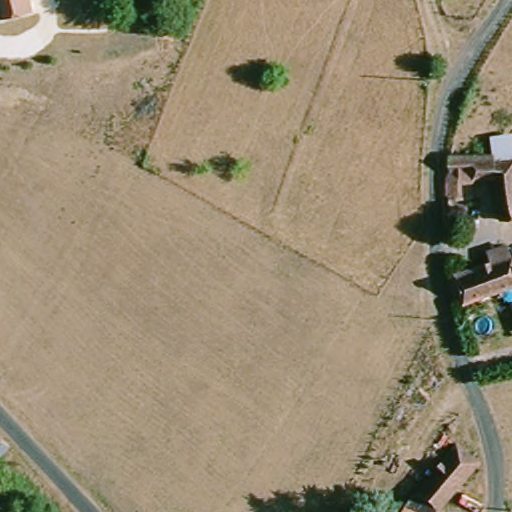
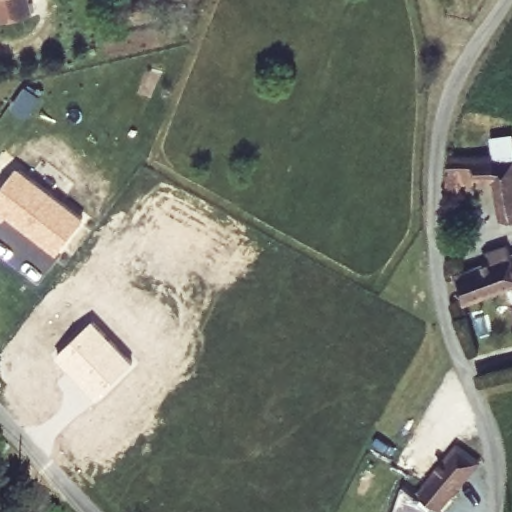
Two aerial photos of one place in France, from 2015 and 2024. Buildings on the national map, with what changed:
unchanged [(0,19),(0,0),(33,0),(35,10),(0,19)]
unchanged [(491,182),(462,183),(461,192),(446,193),(448,155),(491,152),(489,138),(512,136),(512,221),(501,222),(491,182)]
new [(18,169),(80,220),(55,252),(5,212),(2,217),(0,215),(0,191),(18,169)]
unchanged [(459,272),(512,254),(512,284),(464,298),(459,272)]
new [(92,319),(132,362),(96,396),(55,353),(92,319)]
unchanged [(416,492),(457,451),(477,466),(437,508),(416,492)]

